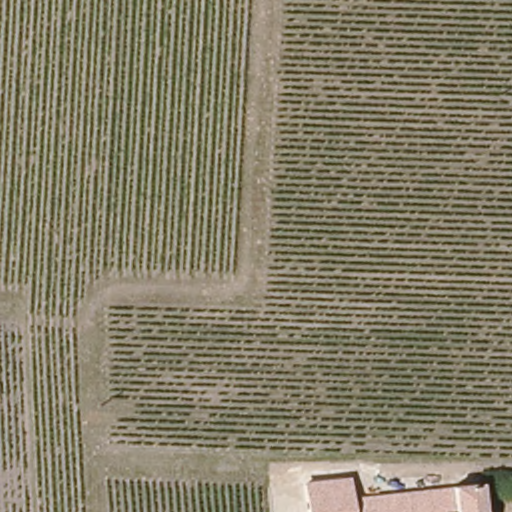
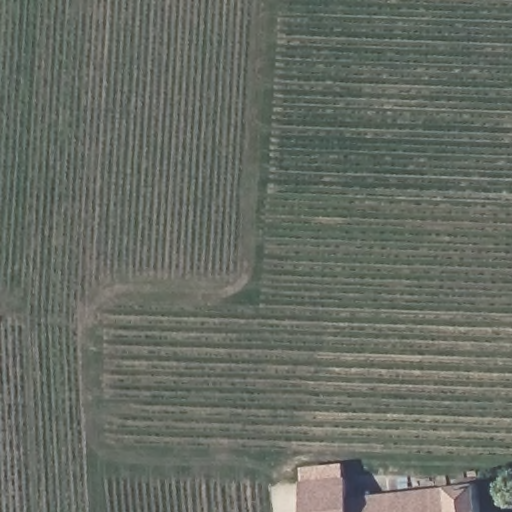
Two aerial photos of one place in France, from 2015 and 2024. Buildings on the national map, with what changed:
unchanged [(341,478),(344,497),(469,491),(470,512),(305,512),(303,480),(341,478)]

